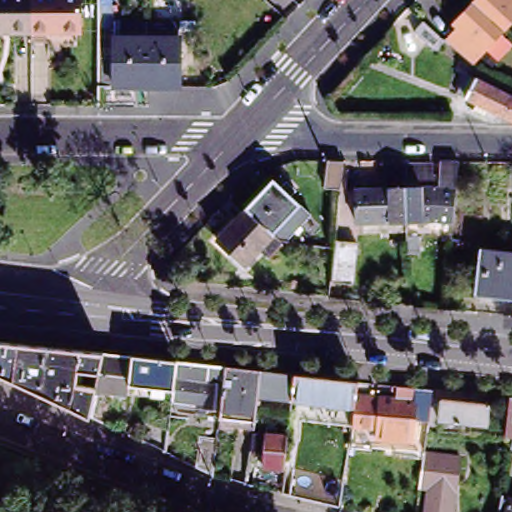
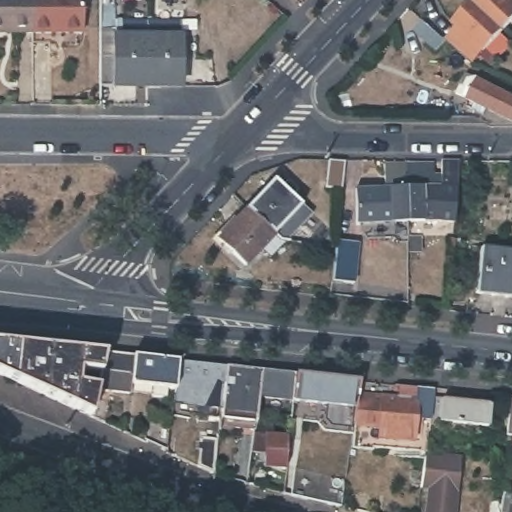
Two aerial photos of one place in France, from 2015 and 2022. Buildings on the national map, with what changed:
unchanged [(47,41),(30,41),(30,31),(0,30),(0,0),(80,0),(80,31),(75,31),(75,44),(47,44),(47,41)]
unchanged [(472,5),(476,0),(512,0),(512,25),(503,34),(472,68),(465,61),(445,43),(455,32),(450,28),(457,20),(472,5)]
unchanged [(114,9),(130,9),(130,24),(195,25),(195,91),(130,90),(112,90),(114,9)]
unchanged [(444,43),(435,53),(414,34),(423,24),(444,43)]
unchanged [(476,106),(466,101),(457,96),(460,90),(466,76),(475,81),(512,98),(512,123),(488,112),(485,118),(473,112),(476,106)]
unchanged [(455,217),(453,225),(435,223),(407,224),(406,204),(405,190),(405,167),(432,167),(433,180),(440,180),(441,165),(441,163),(458,165),(459,165),(458,169),(455,217)]
unchanged [(326,192),(330,165),(345,166),(342,193),(326,192)]
unchanged [(380,225),(356,226),(355,192),(378,191),(383,190),(382,167),(405,167),(405,190),(406,204),(407,224),(380,225)]
unchanged [(268,260),(260,251),(243,269),(215,243),(245,212),(273,184),(281,192),(286,186),(295,195),(290,201),(299,210),(310,221),(288,245),(279,244),(272,238),(278,244),(281,247),(268,260)]
unchanged [(408,245),(407,239),(419,239),(420,254),(408,255),(408,245)]
unchanged [(336,250),(336,243),(358,245),(353,287),(332,284),(336,250)]
unchanged [(477,297),(482,252),(512,254),(512,301),(477,297)]
unchanged [(0,343),(20,346),(105,356),(135,359),(131,389),(130,396),(116,395),(115,405),(110,405),(106,426),(90,419),(0,376),(0,343)]
unchanged [(200,414),(200,406),(175,403),(175,402),(153,399),(154,391),(131,389),(135,359),(180,364),(227,370),(223,412),(210,410),(210,415),(200,414)]
unchanged [(255,432),(241,430),(221,428),(222,420),(223,412),(227,370),(261,373),(296,377),(360,385),(358,397),(356,411),(294,403),(258,399),(255,432)]
unchanged [(433,401),(430,422),(430,423),(416,422),(414,445),(380,442),(380,429),(355,426),(356,411),(358,397),(377,399),(398,401),(399,389),(405,390),(434,393),(433,401)]
unchanged [(511,440),(511,438),(508,438),(511,402),(511,400),(512,400),(512,440),(511,440)]
unchanged [(430,423),(430,422),(433,401),(491,408),(488,430),(440,424),(440,429),(430,428),(430,423)]
unchanged [(265,467),(269,435),(290,438),(287,469),(265,467)]
unchanged [(464,457),(457,512),(428,512),(431,491),(421,489),(426,452),(464,457)]
unchanged [(506,512),(508,498),(512,498),(512,512),(506,512)]

